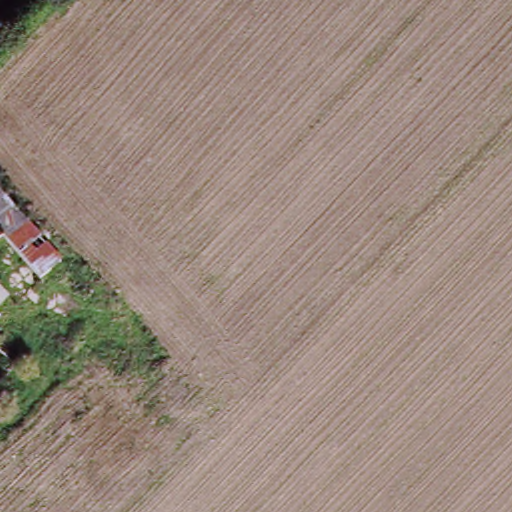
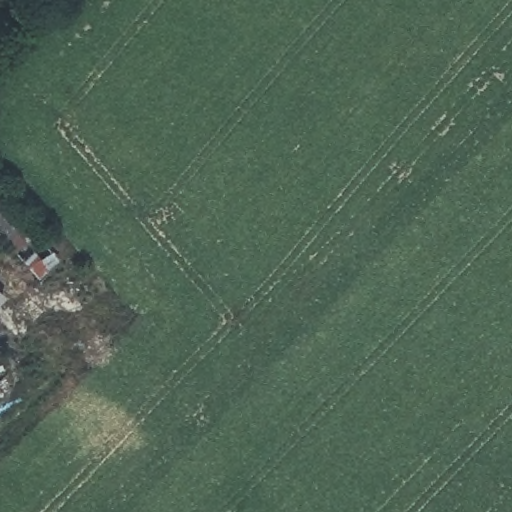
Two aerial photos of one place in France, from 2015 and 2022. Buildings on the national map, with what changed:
unchanged [(62,262),(42,279),(0,232),(0,194),(62,262)]
unchanged [(8,296),(0,306),(0,289),(8,296)]

